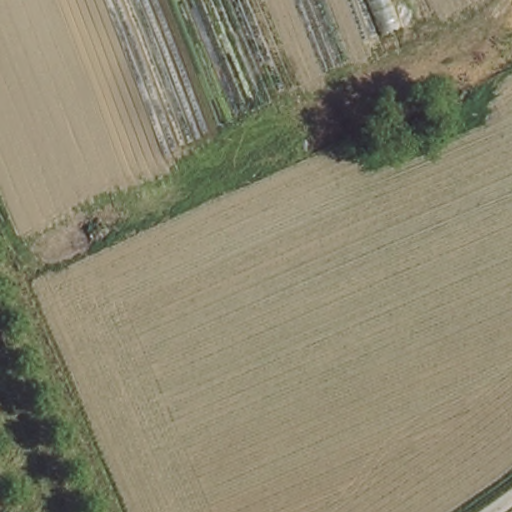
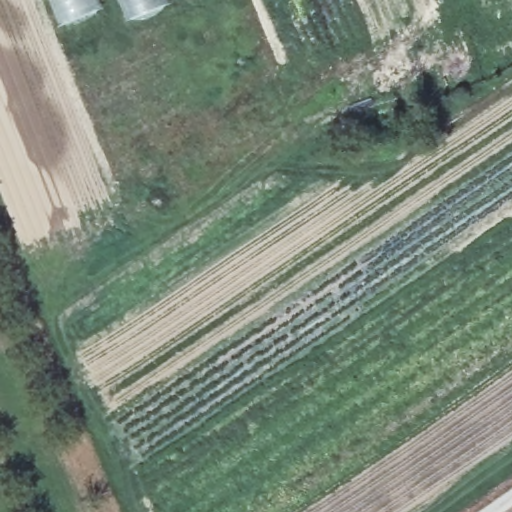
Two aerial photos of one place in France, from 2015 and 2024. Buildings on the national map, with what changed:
new [(105,8),(57,28),(46,0),(101,0),(105,8)]
new [(123,11),(119,0),(152,0),(123,11)]

